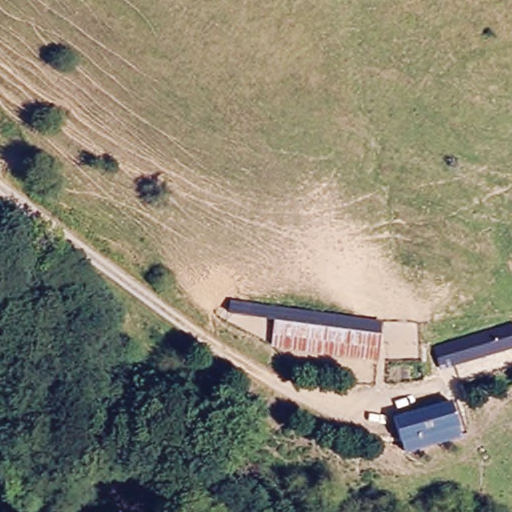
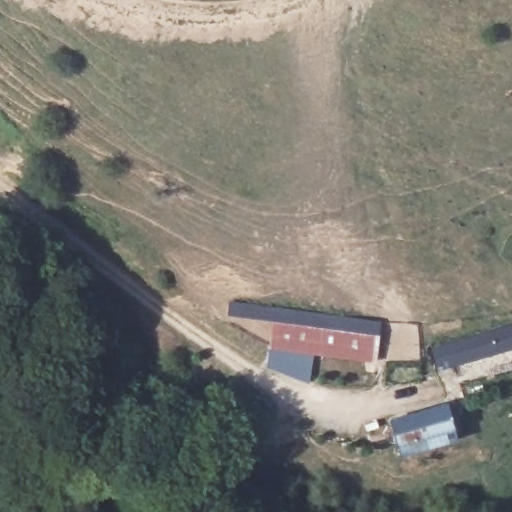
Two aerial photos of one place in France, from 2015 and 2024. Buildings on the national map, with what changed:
unchanged [(269,351),(272,336),(229,324),(228,304),(384,325),(379,366),(269,351)]
unchanged [(512,325),(512,348),(469,362),(462,341),(512,325)]
unchanged [(499,368),(505,392),(487,396),(481,373),(499,368)]
unchanged [(401,459),(391,422),(451,403),(461,441),(401,459)]

